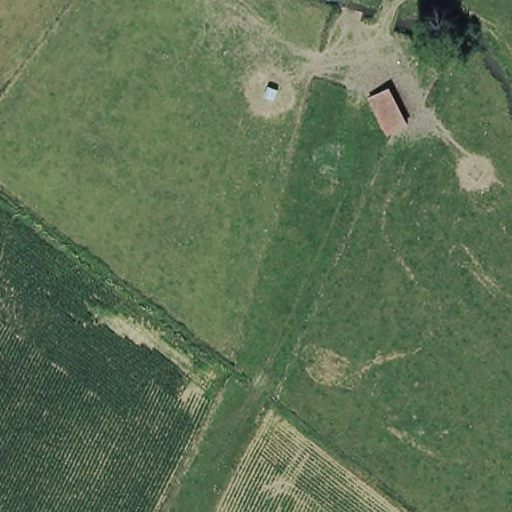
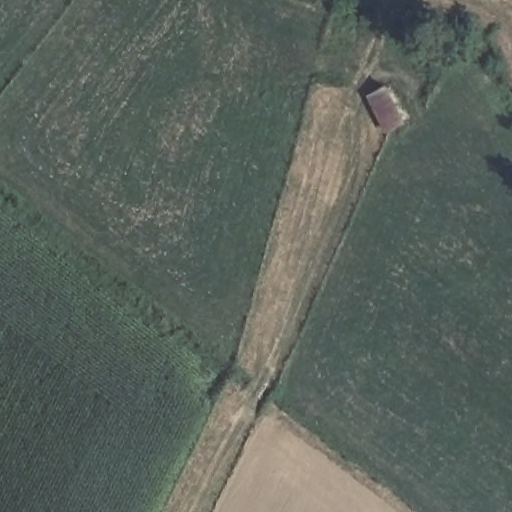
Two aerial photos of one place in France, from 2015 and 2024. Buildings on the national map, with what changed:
unchanged [(391,86),(412,125),(385,138),(369,99),(391,86)]

